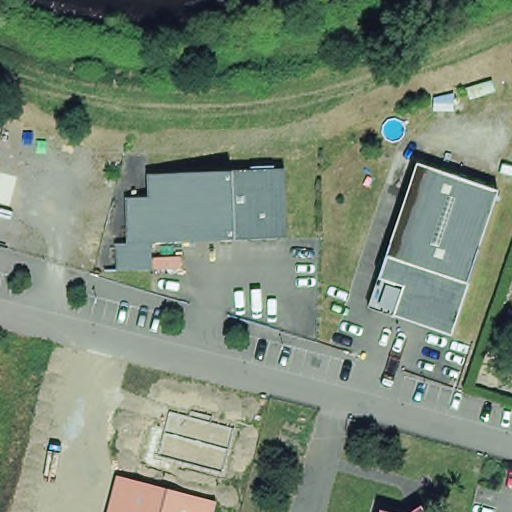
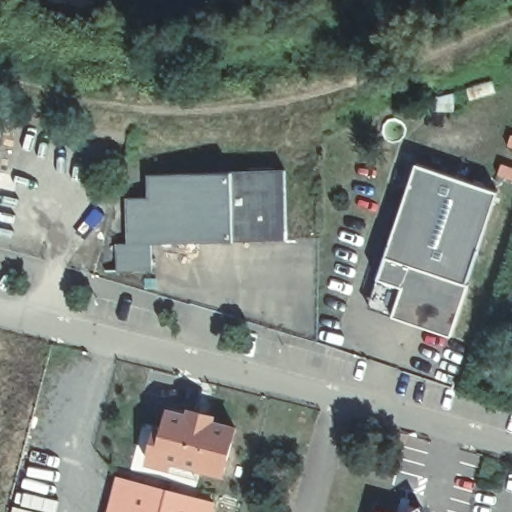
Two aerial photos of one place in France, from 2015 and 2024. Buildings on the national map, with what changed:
unchanged [(6,124),(3,140),(17,145),(10,179),(0,175),(0,122),(6,124)]
unchanged [(414,157),(504,182),(452,335),(366,305),(414,157)]
unchanged [(118,266),(116,242),(128,241),(127,204),(151,204),(150,172),(284,166),(287,234),(153,240),(154,265),(118,266)]
demolished [(306,459),(273,450),(284,405),(316,415),(306,459)]
new [(224,477),(201,471),(199,475),(148,463),(159,424),(164,425),(171,407),(188,410),(189,406),(218,412),(217,420),(238,425),(224,477)]
unchanged [(216,502),(214,512),(107,512),(116,476),(216,502)]
unchanged [(424,506),(427,512),(413,512),(424,506)]
unchanged [(383,508),(394,512),(382,512),(383,508)]

